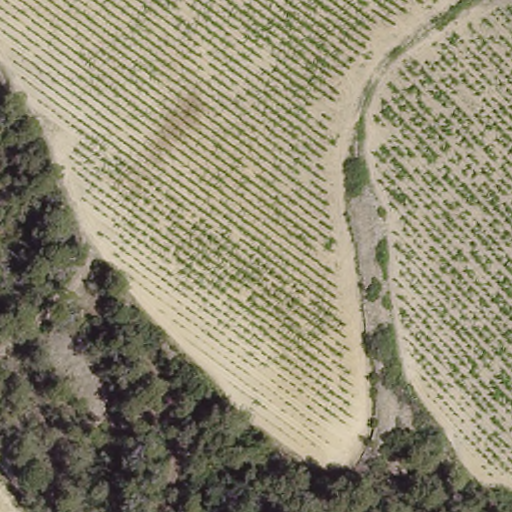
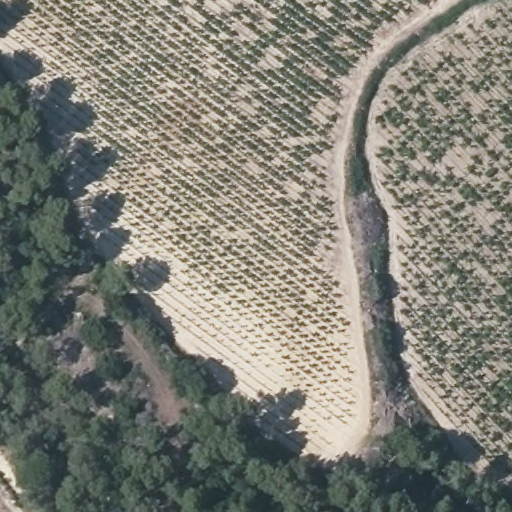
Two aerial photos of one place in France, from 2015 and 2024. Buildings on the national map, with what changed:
unchanged [(7,89),(0,93),(0,75),(7,89)]

